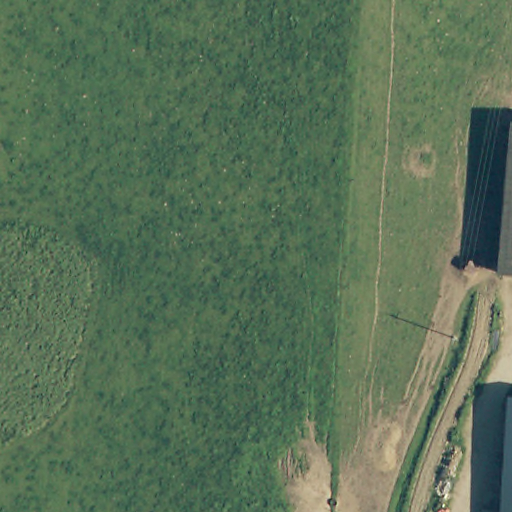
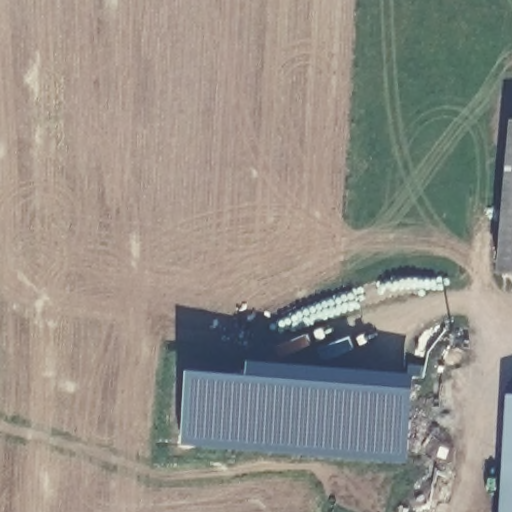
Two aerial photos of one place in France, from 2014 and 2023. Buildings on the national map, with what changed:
unchanged [(512,153),(512,272),(501,271),(512,153)]
new [(249,359),(409,370),(408,385),(249,374),(249,359)]
new [(187,370),(249,374),(408,385),(403,456),(182,441),(187,370)]
unchanged [(512,401),(512,512),(500,512),(502,400),(512,401)]

